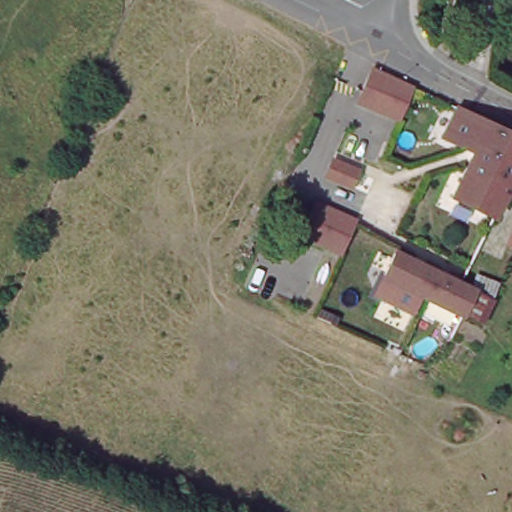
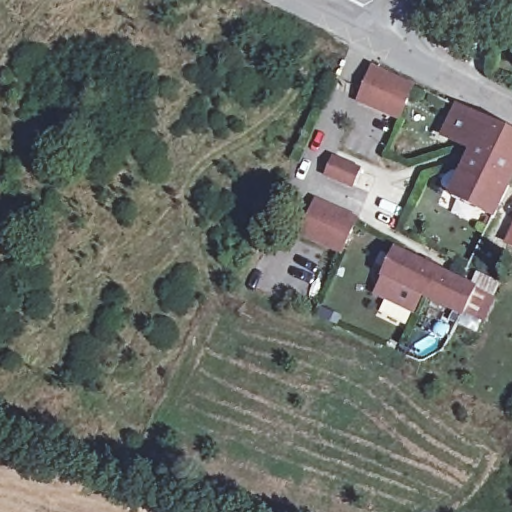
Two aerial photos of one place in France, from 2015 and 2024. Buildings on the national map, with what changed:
unchanged [(413,85),(398,118),(356,100),(371,67),(413,85)]
unchanged [(451,194),(474,149),(444,134),(459,106),(512,133),(512,173),(492,212),(457,196),(451,194)]
unchanged [(345,164),(339,179),(324,172),(331,157),(345,164)]
unchanged [(354,222),(340,253),(299,235),(312,204),(354,222)]
unchanged [(512,227),(512,242),(506,240),(512,227)]
unchanged [(489,319),(465,308),(385,272),(394,247),(399,250),(461,277),(473,282),(479,267),(500,277),(493,291),(500,294),(489,319)]

